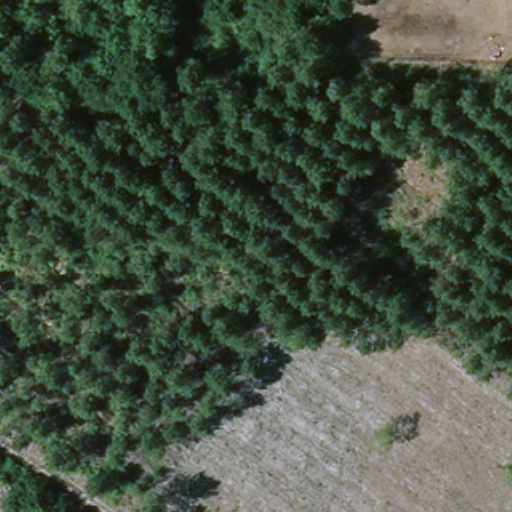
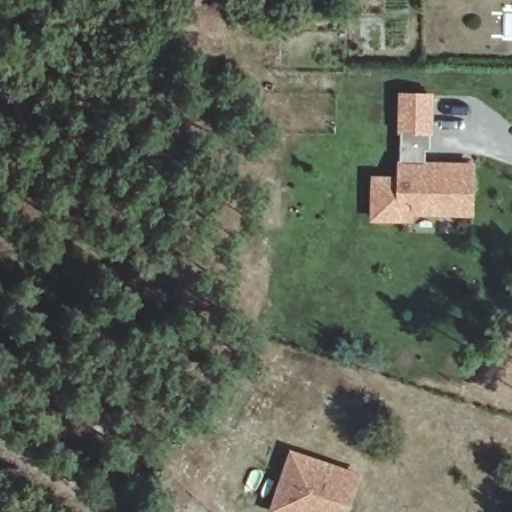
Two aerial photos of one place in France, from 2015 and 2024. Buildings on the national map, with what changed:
new [(473,217),(413,215),(412,221),(370,220),(371,175),(397,175),(397,161),(401,160),(401,132),(398,132),(398,92),(434,93),(433,134),(428,134),(428,149),(423,149),(424,162),(474,162),(473,217)]
new [(363,475),(351,512),(269,512),(290,451),(363,475)]

